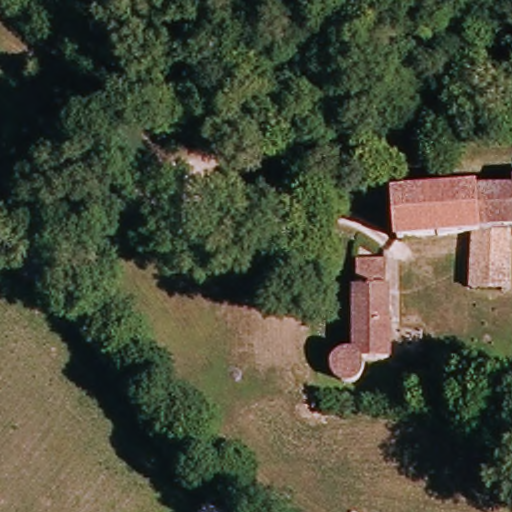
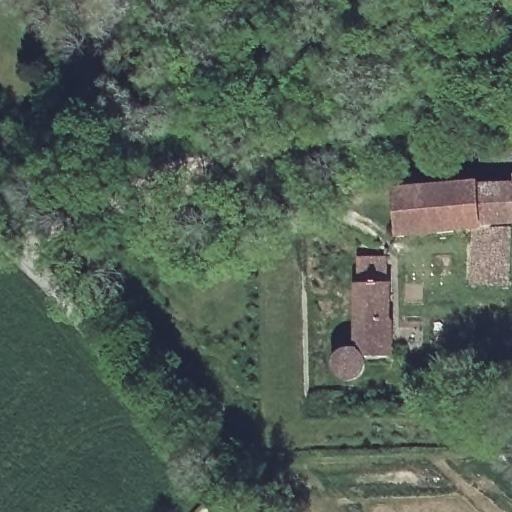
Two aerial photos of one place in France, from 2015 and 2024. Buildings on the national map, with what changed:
unchanged [(489,181),(512,180),(512,226),(510,226),(483,229),(407,236),(405,202),(404,189),(414,187),(487,177),(489,181)]
unchanged [(512,252),(512,279),(488,281),(483,229),(510,226),(512,252)]
unchanged [(337,353),(343,351),(347,351),(352,352),(359,265),(361,254),(386,257),(385,278),(379,361),(359,361),(359,367),(356,373),(349,377),(342,378),(335,375),(332,371),(331,367),(332,362),(333,358),(337,353)]

